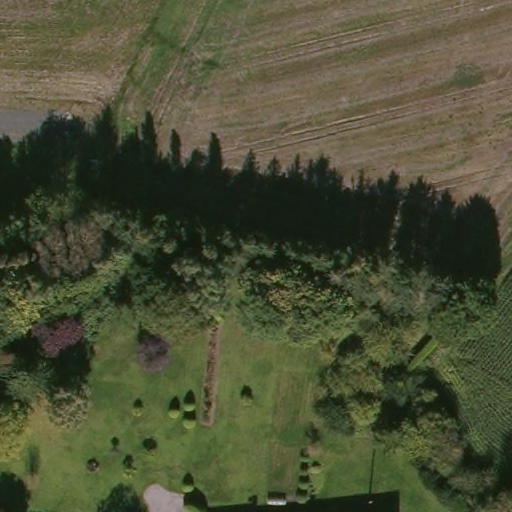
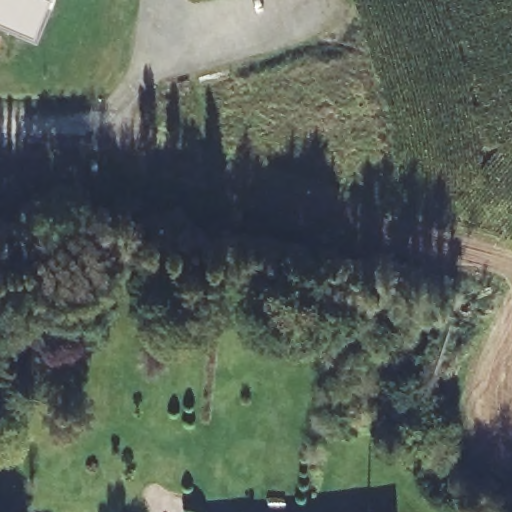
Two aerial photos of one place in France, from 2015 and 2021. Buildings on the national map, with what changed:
new [(51,0),(34,42),(0,28),(0,0),(51,0)]
unchanged [(395,501),(397,512),(334,512),(395,501)]

